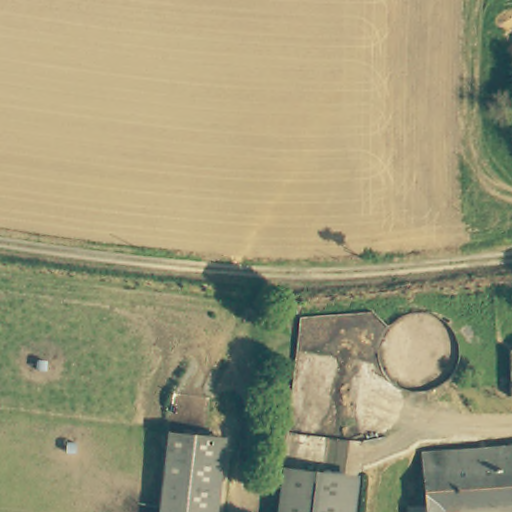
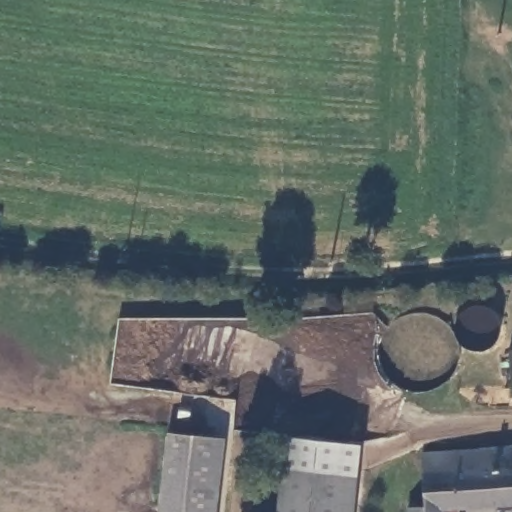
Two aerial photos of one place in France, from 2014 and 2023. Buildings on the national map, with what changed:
unchanged [(208,433),(201,512),(156,512),(163,429),(208,433)]
unchanged [(423,469),(422,452),(446,451),(512,450),(512,503),(457,505),(424,506),(423,469)]
unchanged [(340,460),(336,512),(275,512),(280,454),(340,460)]
unchanged [(411,507),(424,506),(457,505),(457,512),(411,512),(411,511),(411,507)]

